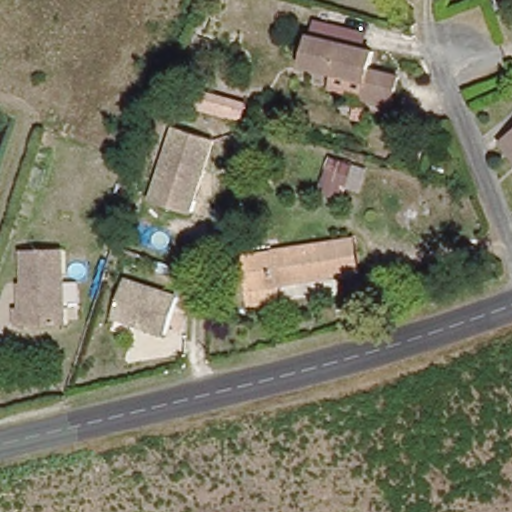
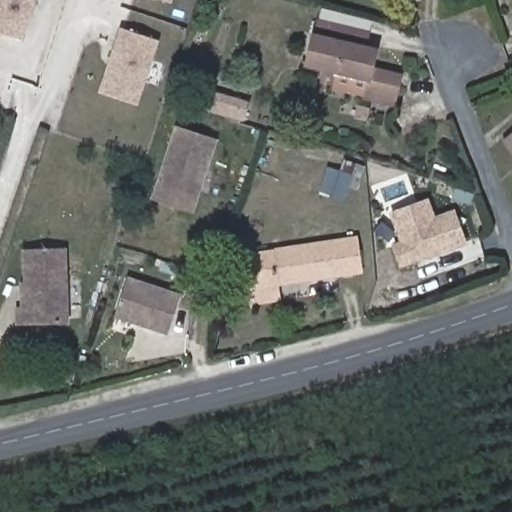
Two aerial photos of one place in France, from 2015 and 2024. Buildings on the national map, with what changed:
new [(0,29),(0,0),(37,0),(25,37),(0,29)]
unchanged [(371,65),(400,73),(391,103),(363,96),(368,78),(306,60),(314,29),(318,14),(368,28),(363,43),(376,46),(371,65)]
new [(158,37),(137,100),(102,89),(123,25),(158,37)]
unchanged [(176,128),(216,140),(192,217),(148,202),(176,128)]
unchanged [(503,137),(512,131),(512,148),(503,137)]
new [(452,210),(465,245),(400,268),(391,242),(398,240),(388,212),(429,198),(433,217),(452,210)]
unchanged [(349,272),(257,286),(250,253),(344,240),(349,272)]
unchanged [(30,298),(27,243),(64,241),(69,314),(22,318),(20,299),(30,298)]
unchanged [(179,294),(167,336),(114,318),(127,277),(179,294)]

